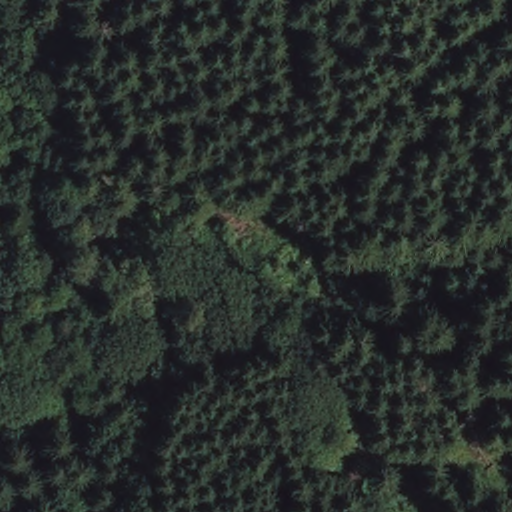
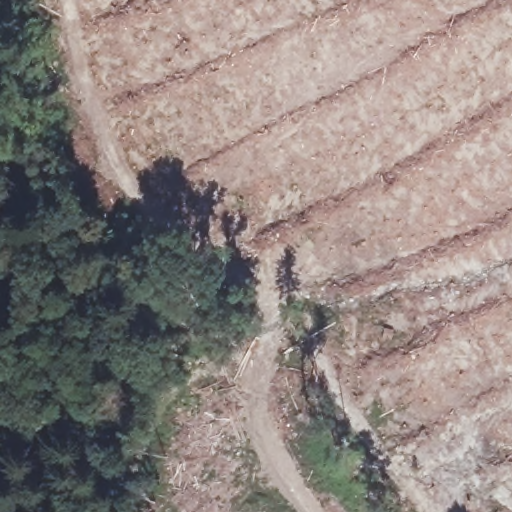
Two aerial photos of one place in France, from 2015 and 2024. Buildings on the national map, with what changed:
unchanged [(287,227),(282,267),(231,261),(235,221),(287,227)]

